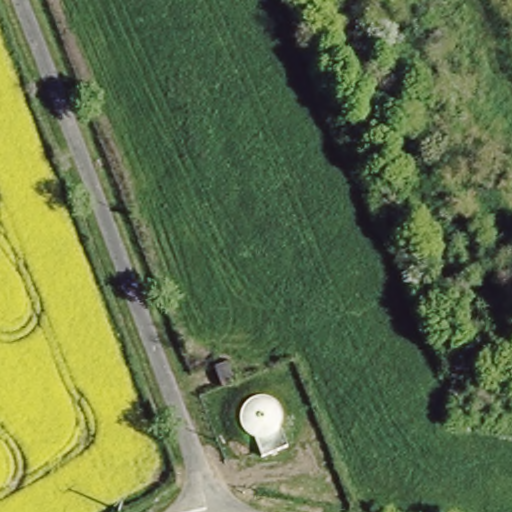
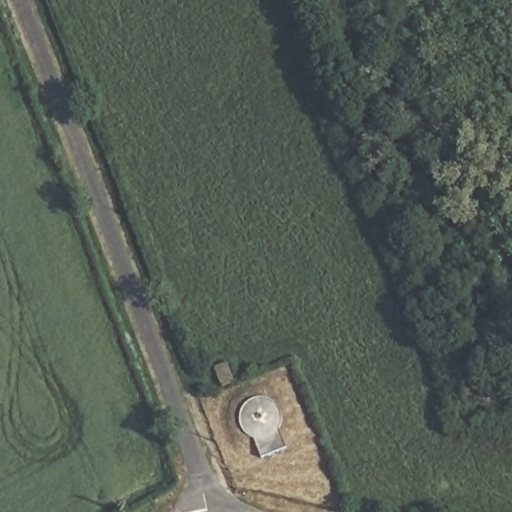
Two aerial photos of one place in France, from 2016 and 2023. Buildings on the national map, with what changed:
unchanged [(213,362),(222,359),(229,377),(220,380),(213,362)]

